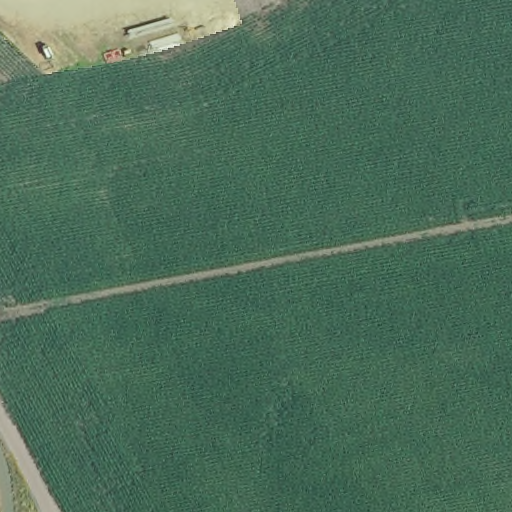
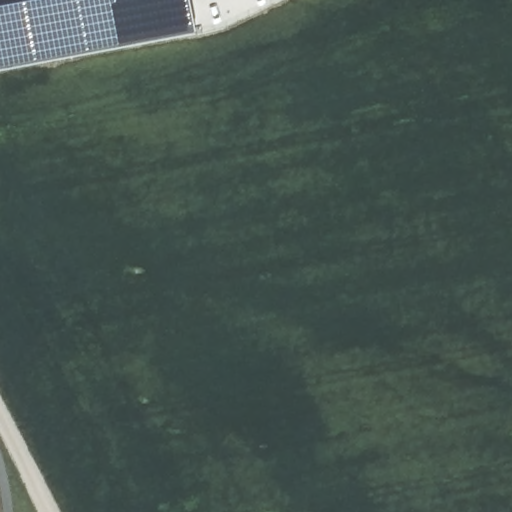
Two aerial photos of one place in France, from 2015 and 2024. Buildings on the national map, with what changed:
new [(0,69),(0,0),(191,0),(197,34),(0,69)]

